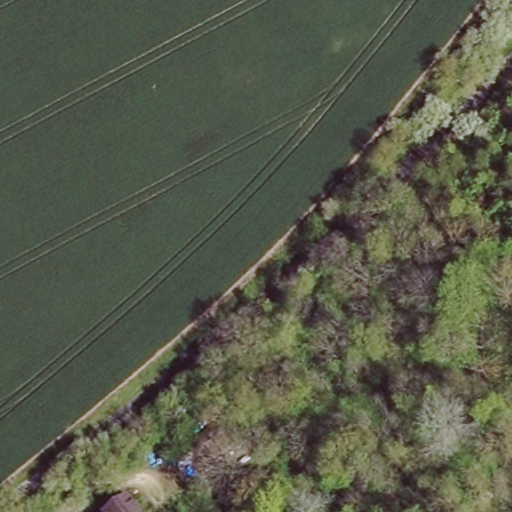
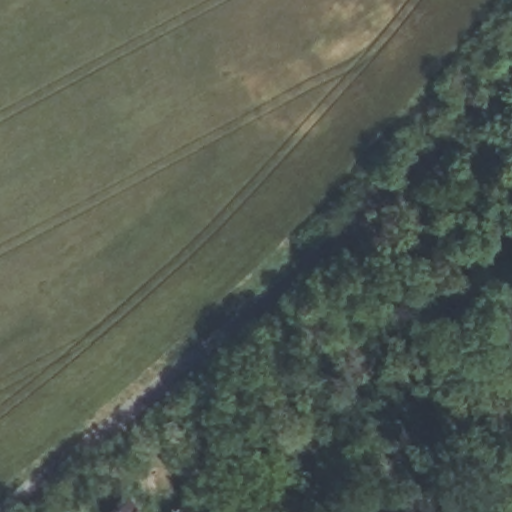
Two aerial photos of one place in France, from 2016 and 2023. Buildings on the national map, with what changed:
unchanged [(206,418),(221,437),(199,455),(196,458),(182,439),(206,418)]
unchanged [(117,492),(134,512),(94,512),(117,492)]

